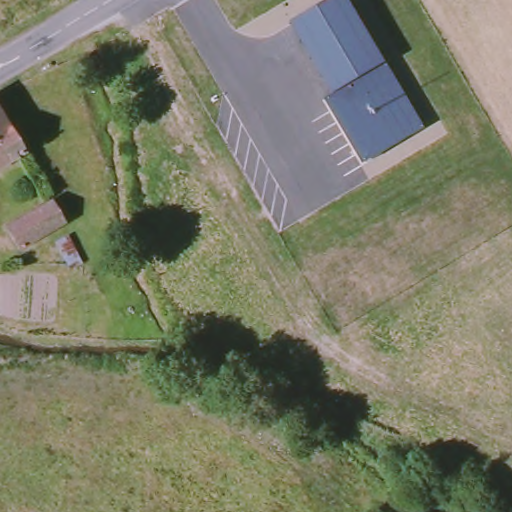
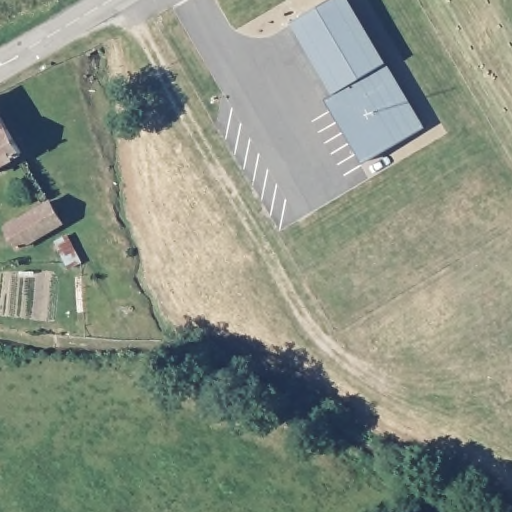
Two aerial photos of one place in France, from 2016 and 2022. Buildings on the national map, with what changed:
unchanged [(367,165),(330,101),(338,95),(295,24),(337,0),(353,0),(391,66),(429,129),(367,165)]
unchanged [(0,107),(27,155),(0,171),(0,107)]
unchanged [(63,234),(20,258),(8,236),(51,210),(63,234)]
unchanged [(83,270),(70,277),(65,270),(55,253),(70,245),(83,270)]

